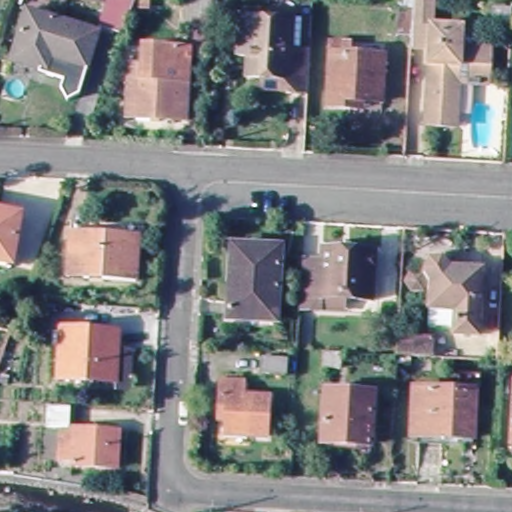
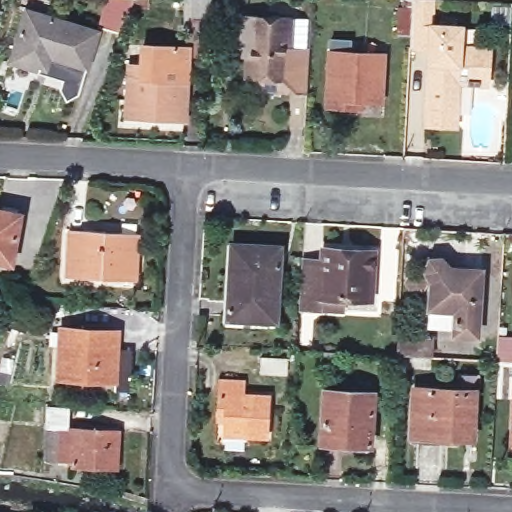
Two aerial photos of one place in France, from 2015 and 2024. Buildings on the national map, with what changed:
unchanged [(199,0),(214,0),(214,1),(212,27),(197,26),(199,0)]
unchanged [(401,37),(404,0),(420,0),(438,1),(437,25),(465,27),(463,48),(492,50),(490,86),(461,84),(457,127),(428,125),(433,46),(417,45),(417,38),(401,37)]
unchanged [(91,19),(85,55),(80,84),(68,89),(60,77),(62,69),(37,65),(37,62),(10,57),(18,7),(91,19)]
unchanged [(257,76),(244,76),(245,54),(232,53),(235,11),(307,15),(303,91),(282,90),(256,90),(257,76)]
unchanged [(347,109),(325,106),(330,44),(351,45),(351,54),(383,56),(380,103),(358,101),(357,109),(347,109)]
unchanged [(189,47),(183,122),(125,118),(128,69),(137,69),(140,45),(189,47)]
unchanged [(21,218),(12,264),(0,262),(0,214),(21,218)]
unchanged [(69,230),(136,235),(134,283),(67,278),(69,230)]
unchanged [(235,242),(282,245),(277,320),(231,316),(235,242)]
unchanged [(321,311),(297,310),(300,260),(325,261),(326,248),(378,250),(375,301),(345,300),(343,312),(321,311)]
unchanged [(431,281),(425,275),(427,262),(440,263),(445,271),(478,274),(475,338),(430,335),(431,281)]
unchanged [(60,331),(115,335),(114,383),(58,380),(60,331)]
unchanged [(430,337),(428,358),(393,356),(395,335),(430,337)]
unchanged [(338,354),(337,369),(322,368),(323,353),(338,354)]
unchanged [(260,360),(285,361),(285,375),(259,375),(260,360)]
unchanged [(222,412),(225,383),(246,385),(245,397),(270,398),(268,439),(229,437),(230,422),(222,421),(222,412)]
unchanged [(381,446),(369,446),(321,443),(325,390),(372,393),(370,428),(382,428),(381,446)]
unchanged [(413,392),(472,395),(469,445),(440,444),(410,442),(410,436),(413,392)]
unchanged [(122,433),(121,455),(120,469),(77,467),(77,463),(45,462),(47,430),(49,405),(74,407),(71,431),(115,433),(122,433)]
unchanged [(512,429),(512,449),(511,448),(512,429)]

